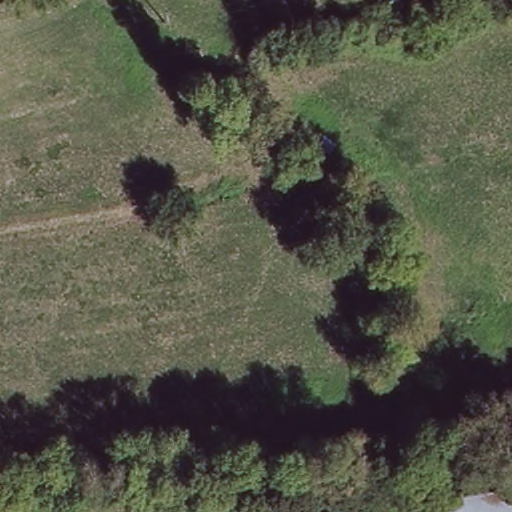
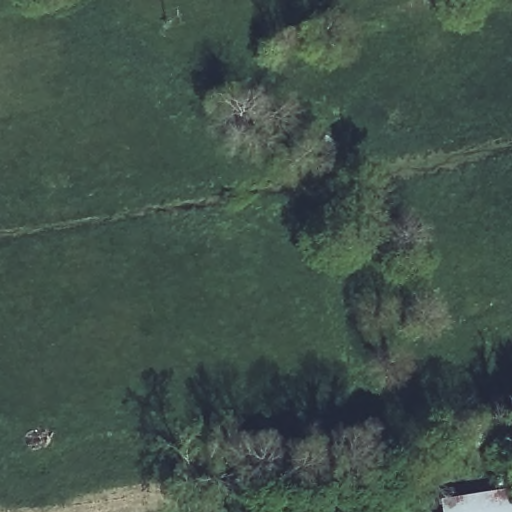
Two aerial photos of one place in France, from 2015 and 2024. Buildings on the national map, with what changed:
unchanged [(512,493),(512,512),(446,512),(443,501),(512,493)]

